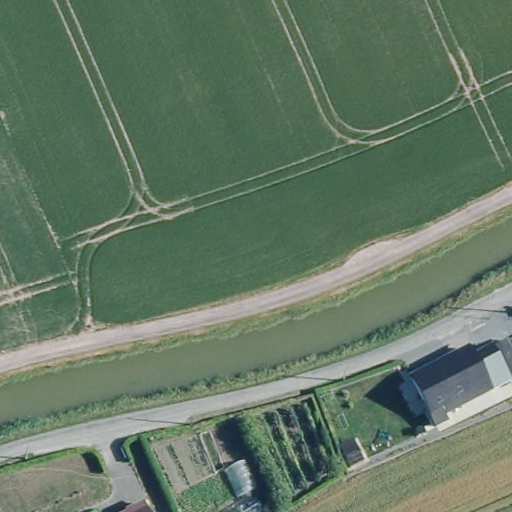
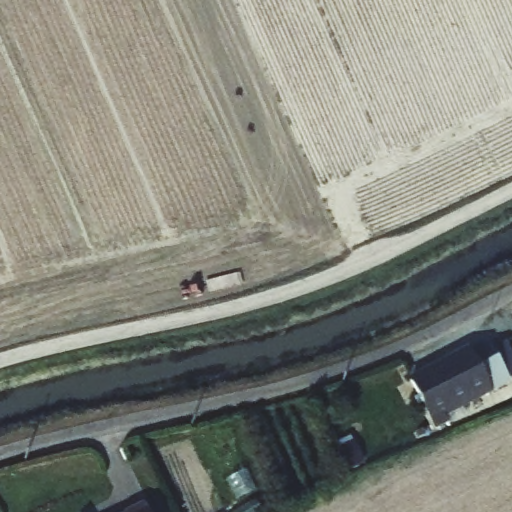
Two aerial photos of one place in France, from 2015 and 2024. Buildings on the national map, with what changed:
unchanged [(407,380),(466,350),(471,359),(490,348),(510,386),(492,395),(443,420),(447,427),(434,433),(407,380)]
unchanged [(143,512),(126,512),(140,506),(143,512)]
unchanged [(226,512),(225,512),(226,511),(226,512)]

